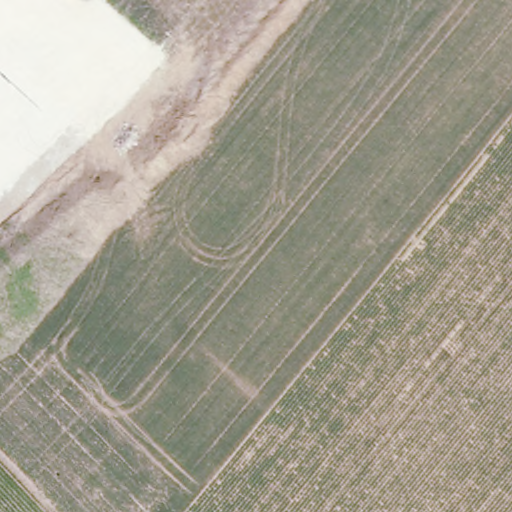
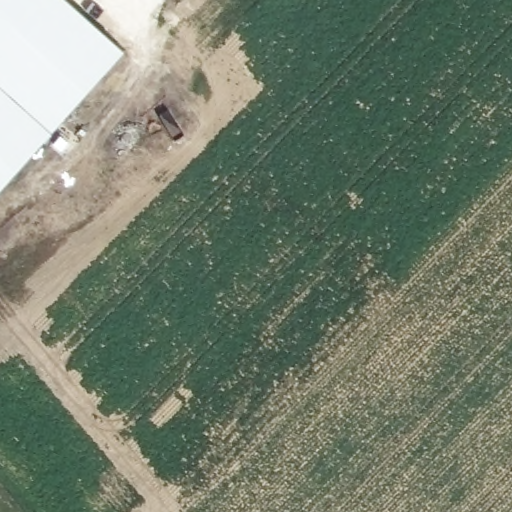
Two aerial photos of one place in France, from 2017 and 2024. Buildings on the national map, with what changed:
new [(22,180),(0,205),(0,0),(69,0),(132,54),(22,180)]

